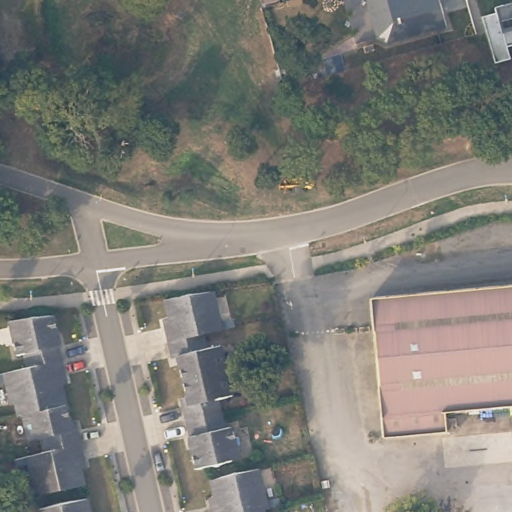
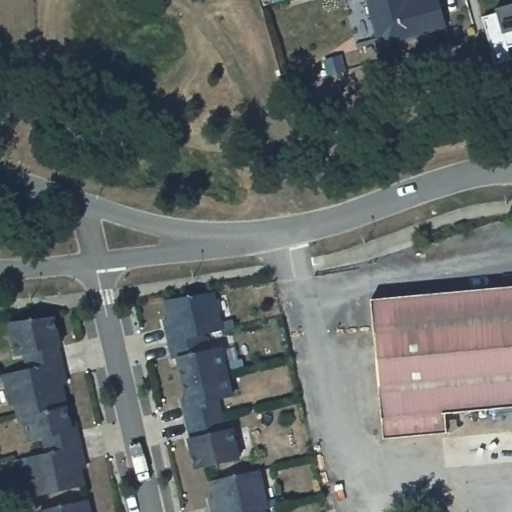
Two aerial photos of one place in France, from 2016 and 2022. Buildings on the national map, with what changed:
unchanged [(444,29),(377,40),(367,0),(439,0),(444,29)]
unchanged [(512,4),(512,44),(508,45),(509,60),(493,61),(480,15),(512,4)]
unchanged [(373,295),(512,281),(512,400),(448,406),(450,426),(387,432),(373,295)]
unchanged [(186,406),(184,399),(189,398),(182,365),(179,366),(177,358),(176,359),(168,327),(167,320),(172,319),(168,301),(216,293),(223,323),(236,321),(237,328),(224,331),(205,335),(209,350),(223,347),(234,396),(219,400),(226,430),(233,428),(240,459),(197,468),(193,450),(190,438),(193,438),(186,406)]
unchanged [(80,485),(33,495),(26,465),(13,467),(11,460),(24,456),(43,452),(40,437),(26,440),(20,416),(16,417),(13,404),(8,405),(3,382),(0,383),(0,375),(1,375),(25,369),(22,354),(14,355),(7,322),(51,317),(55,335),(57,345),(55,346),(62,377),(63,385),(59,385),(63,406),(67,422),(72,421),(73,429),(80,461),(82,468),(77,469),(80,485)]
unchanged [(211,497),(216,496),(212,480),(260,470),(267,500),(280,497),(282,505),(269,508),(265,509),(266,512),(214,512),(212,504),(211,497)]
unchanged [(41,510),(88,499),(91,512),(45,512),(41,511),(41,510)]

